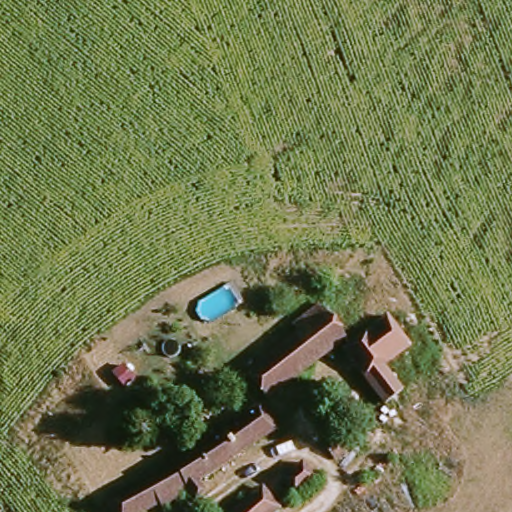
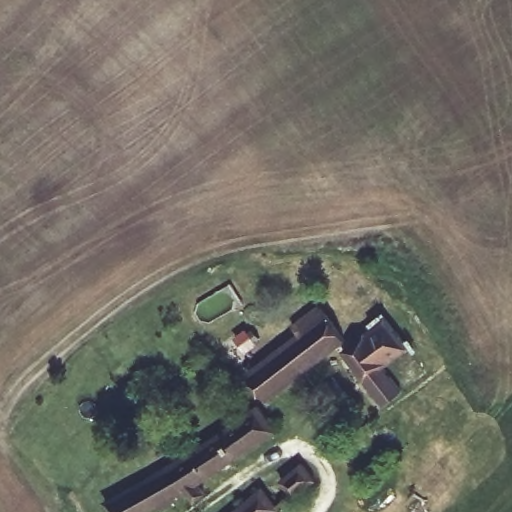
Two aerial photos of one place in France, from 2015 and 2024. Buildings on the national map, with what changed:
unchanged [(322,311),(346,347),(264,401),(245,373),(300,337),(295,330),(322,311)]
unchanged [(356,344),(387,317),(411,344),(390,363),(407,383),(386,404),(342,355),(356,344)]
unchanged [(186,506),(180,496),(154,512),(104,512),(99,503),(250,409),(270,440),(197,486),(203,494),(186,506)]
unchanged [(339,443),(351,454),(336,469),(324,458),(339,443)]
unchanged [(297,504),(282,487),(304,468),(319,485),(297,504)]
unchanged [(282,508),(277,512),(228,512),(264,485),(282,508)]

